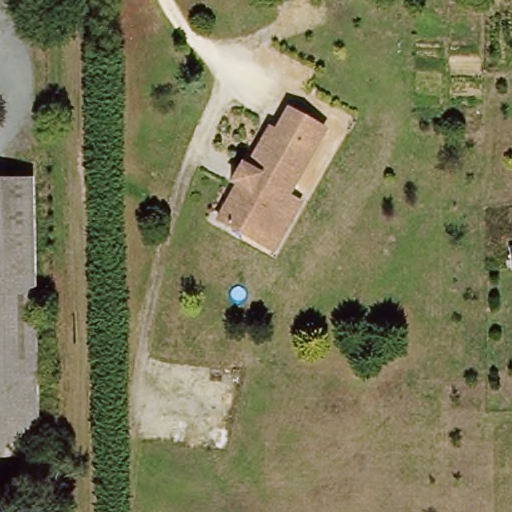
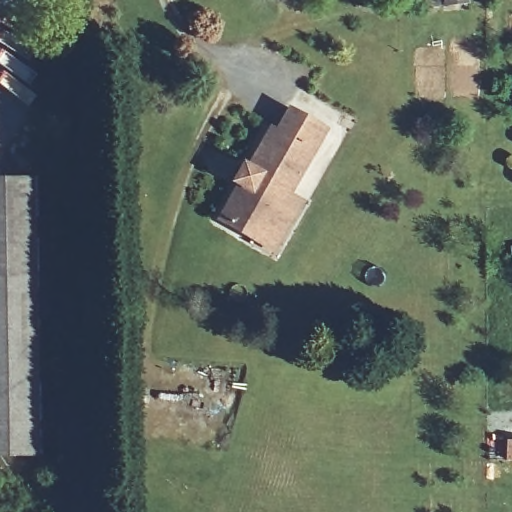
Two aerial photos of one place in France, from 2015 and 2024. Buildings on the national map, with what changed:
unchanged [(240,168),(247,171),(266,132),(271,135),(282,112),(319,131),(262,247),(221,227),(237,193),(230,190),(240,168)]
unchanged [(32,187),(34,278),(0,279),(0,188),(32,187)]
unchanged [(34,278),(36,380),(0,380),(0,279),(34,278)]
unchanged [(36,380),(38,455),(0,456),(0,380),(36,380)]

